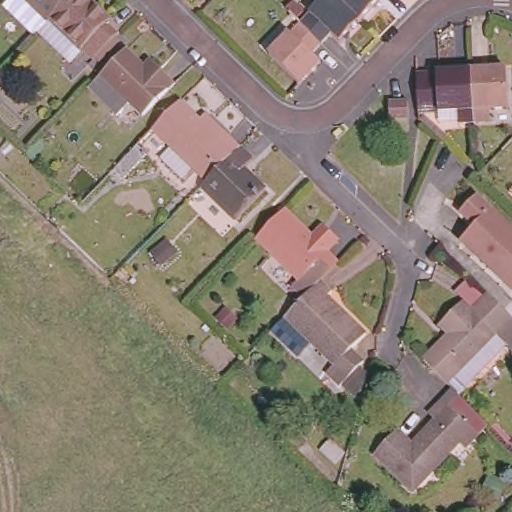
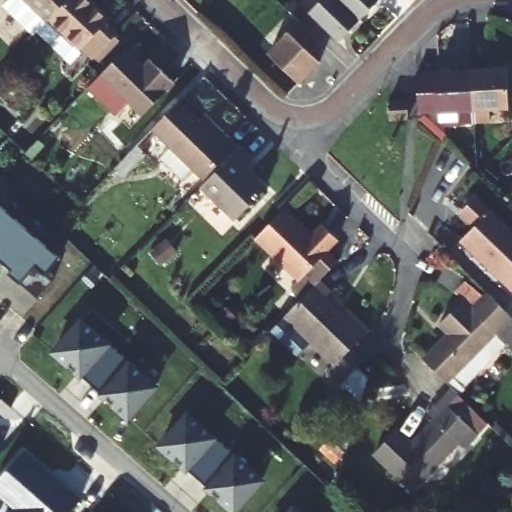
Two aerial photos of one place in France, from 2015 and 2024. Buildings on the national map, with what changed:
unchanged [(44,21),(22,0),(65,0),(47,18),(44,21)]
unchanged [(65,0),(111,0),(118,6),(114,9),(127,21),(101,47),(91,38),(80,49),(47,18),(65,0)]
unchanged [(304,22),(291,10),(302,0),(344,0),(364,19),(343,41),(334,32),(325,42),(304,22)]
unchanged [(344,0),(384,0),(364,19),(344,0)]
unchanged [(325,42),(314,53),(323,61),(301,82),(272,54),(304,22),(325,42)]
unchanged [(153,105),(139,93),(126,106),(98,78),(137,38),(154,56),(161,49),(169,57),(184,73),(153,105)]
unchanged [(511,70),(512,86),(512,110),(494,110),(494,122),(479,123),(476,72),(511,70)]
unchanged [(421,75),(476,72),(479,123),(463,124),(462,112),(422,115),(421,75)]
unchanged [(412,99),(412,118),(394,119),(394,117),(392,100),(412,99)]
unchanged [(208,184),(154,132),(183,103),(211,131),(218,125),(243,149),(208,184)]
unchanged [(138,143),(147,151),(124,174),(116,166),(138,143)]
unchanged [(208,184),(243,149),(256,161),(248,170),(269,190),(238,221),(204,188),(208,184)]
unchanged [(462,207),(475,193),(512,228),(512,282),(462,236),(476,220),(462,207)]
new [(59,255),(45,271),(53,278),(36,296),(21,282),(9,272),(12,269),(0,258),(0,204),(59,255)]
unchanged [(319,281),(300,300),(291,291),(298,283),(253,241),(283,210),(315,242),(325,232),(337,243),(327,253),(337,262),(319,281)]
unchanged [(300,300),(319,281),(331,293),(327,298),(364,335),(351,350),(364,362),(338,388),(326,376),(334,368),(283,318),(300,300)]
unchanged [(457,391),(423,356),(448,331),(440,323),(463,299),(474,309),(491,290),(512,311),(512,329),(503,338),(506,341),(486,362),(457,391)]
new [(129,419),(103,396),(92,386),(81,377),(54,354),(82,322),(119,355),(156,388),(129,419)]
unchanged [(378,455),(401,431),(416,446),(439,421),(432,415),(445,402),(482,435),(478,440),(476,441),(471,445),(469,449),(464,444),(417,493),(378,455)]
new [(234,512),(208,489),(198,480),(187,471),(161,447),(188,416),(225,449),(263,482),(236,512),(234,512)]
new [(70,512),(11,512),(14,507),(0,495),(0,475),(23,448),(82,498),(70,512)]
new [(297,512),(291,512),(294,509),(297,512)]

